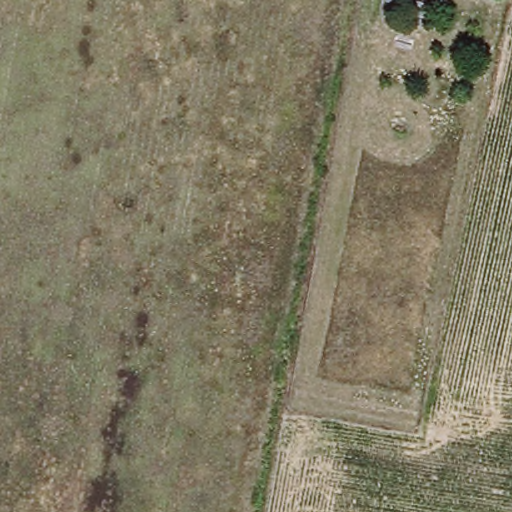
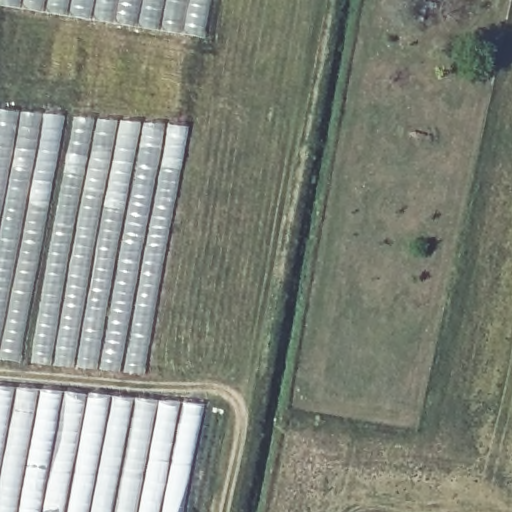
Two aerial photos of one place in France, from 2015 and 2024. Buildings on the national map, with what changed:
new [(10,166),(0,216),(0,109),(19,112),(10,166)]
new [(19,112),(41,114),(6,309),(0,338),(0,216),(10,166),(19,112)]
new [(41,114),(64,116),(41,248),(29,307),(20,364),(0,361),(0,338),(6,309),(41,114)]
new [(58,188),(72,116),(95,118),(56,317),(64,319),(64,321),(57,338),(53,365),(28,362),(58,188)]
new [(57,338),(64,321),(64,319),(56,317),(95,118),(165,123),(119,371),(105,369),(106,361),(85,357),(87,347),(79,346),(76,367),(53,365),(57,338)]
new [(165,123),(188,127),(144,375),(119,371),(165,123)]
new [(97,360),(106,362),(105,367),(95,367),(97,360)]
new [(166,399),(204,404),(185,497),(182,512),(0,512),(0,382),(21,384),(166,399)]

